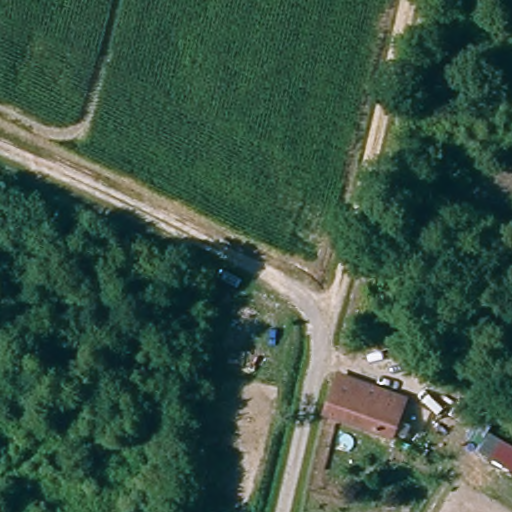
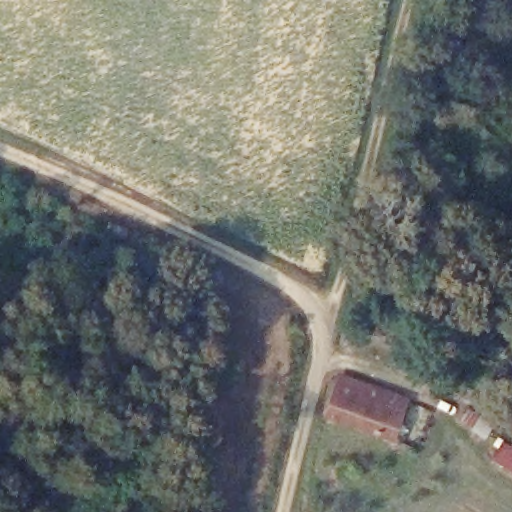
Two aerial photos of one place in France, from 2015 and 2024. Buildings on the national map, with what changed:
unchanged [(415,399),(392,447),(380,441),(383,434),(335,413),(352,371),(415,399)]

